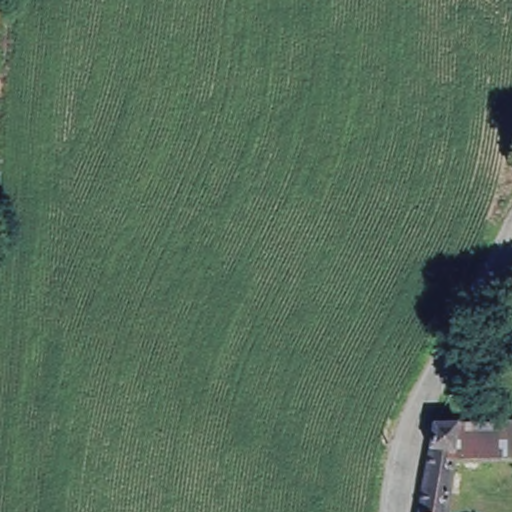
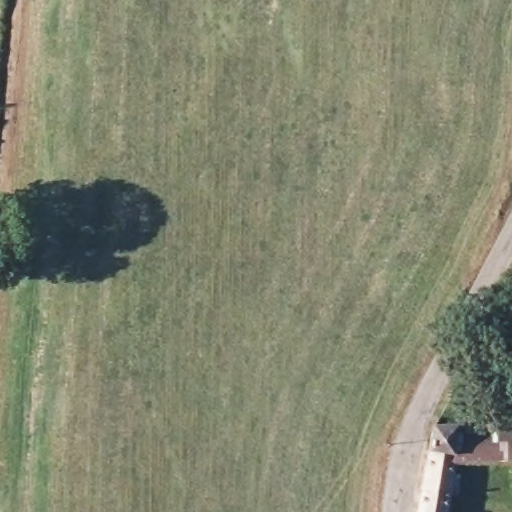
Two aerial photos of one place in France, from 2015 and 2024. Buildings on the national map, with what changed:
unchanged [(512,423),(512,466),(459,467),(452,512),(420,512),(435,423),(512,423)]

